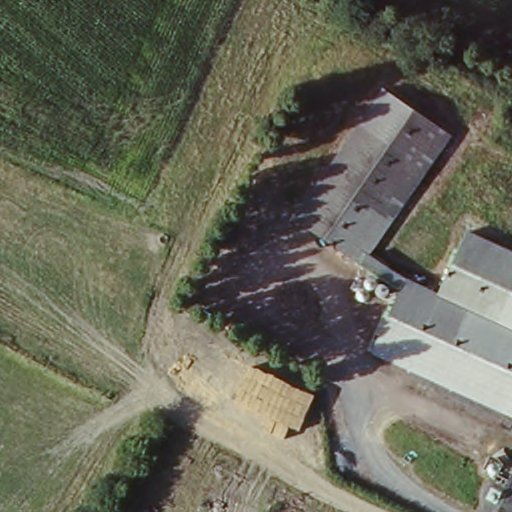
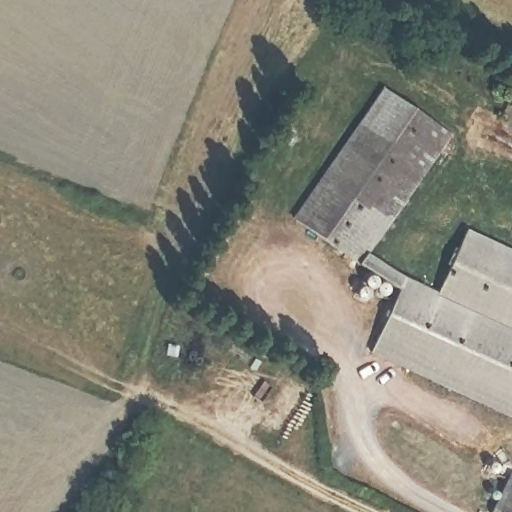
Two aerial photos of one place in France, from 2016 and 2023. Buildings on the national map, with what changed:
unchanged [(380,89),(444,135),(353,262),(291,218),(380,89)]
unchanged [(512,108),(512,124),(495,115),(501,102),(512,108)]
unchanged [(441,291),(469,226),(512,246),(512,414),(373,349),(396,287),(353,262),(365,245),(441,291)]
unchanged [(507,483),(512,486),(512,512),(493,512),(507,483)]

